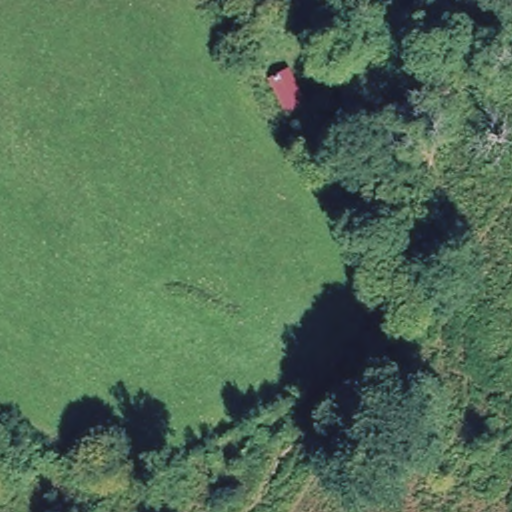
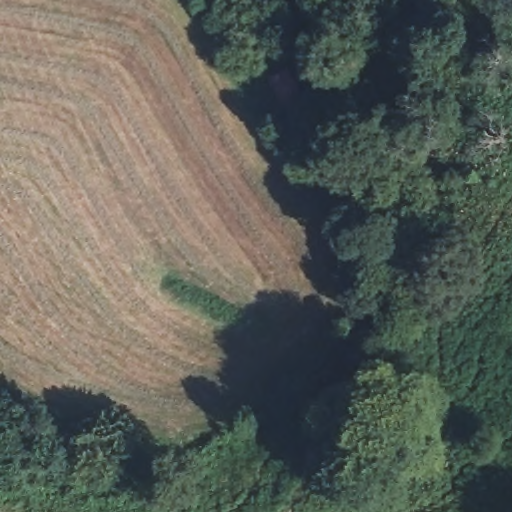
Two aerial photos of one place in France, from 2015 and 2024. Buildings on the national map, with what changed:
unchanged [(314,104),(285,116),(267,69),(295,57),(314,104)]

